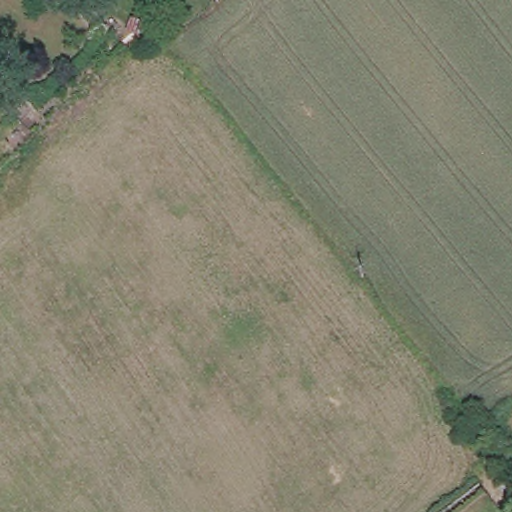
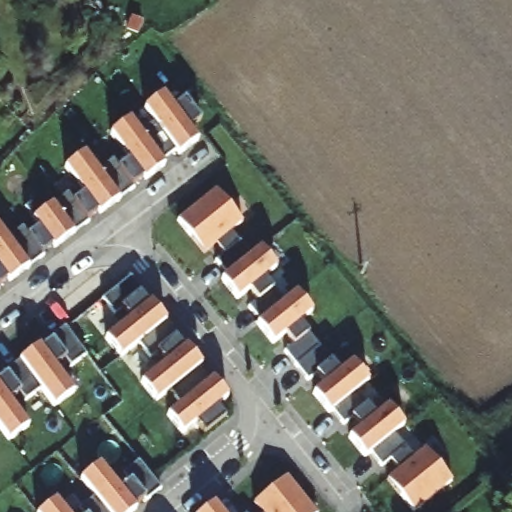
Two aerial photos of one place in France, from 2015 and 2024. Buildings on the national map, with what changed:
new [(31,222),(22,210),(44,194),(53,205),(75,185),(64,169),(84,153),(98,170),(122,153),(110,137),(131,120),(140,132),(153,122),(144,110),(163,94),(175,109),(183,102),(200,121),(189,130),(199,141),(8,283),(0,289),(0,234),(5,240),(31,222)]
new [(216,191),(445,481),(411,506),(180,220),(216,191)]
new [(138,295),(207,382),(212,378),(227,397),(215,408),(223,418),(205,433),(195,422),(182,434),(167,416),(181,405),(172,391),(156,402),(140,381),(164,361),(155,350),(150,355),(138,341),(120,356),(105,338),(127,320),(118,309),(114,314),(105,301),(130,280),(138,295)]
new [(65,326),(85,351),(68,365),(62,357),(52,365),(73,391),(53,407),(37,386),(23,396),(17,391),(8,399),(30,427),(9,444),(0,433),(0,375),(38,346),(65,326)]
new [(80,482),(98,467),(111,481),(137,463),(157,490),(131,512),(73,512),(90,497),(80,482)]
new [(287,477),(315,512),(261,512),(254,503),(287,477)]
new [(63,512),(43,512),(55,501),(63,512)]
new [(221,512),(201,512),(213,501),(221,512)]

